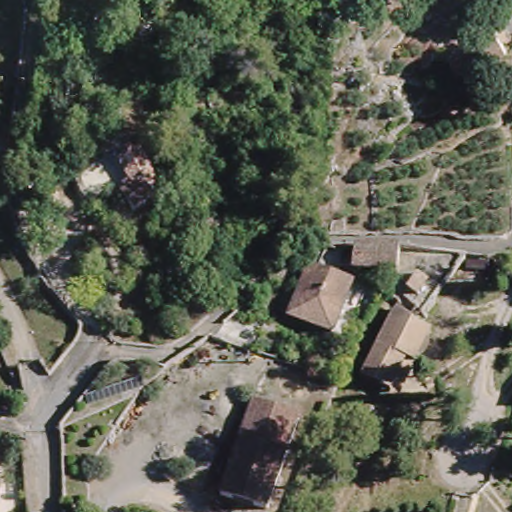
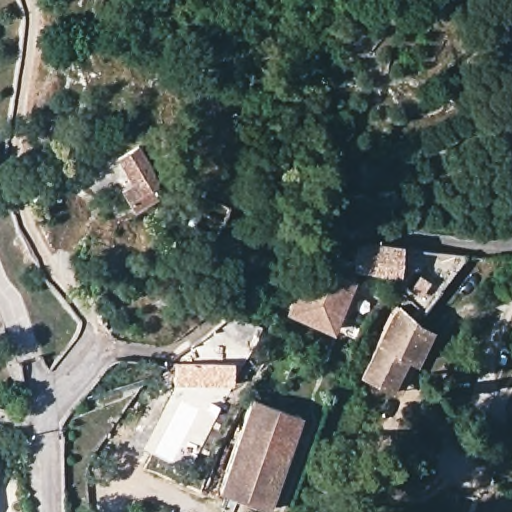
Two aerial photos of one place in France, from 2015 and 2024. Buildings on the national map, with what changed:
unchanged [(495,31),(507,24),(512,29),(512,47),(509,49),(512,52),(512,53),(497,62),(493,65),(485,71),(463,48),(480,40),(495,31)]
unchanged [(120,194),(144,178),(158,200),(135,215),(120,194)]
unchanged [(358,255),(374,253),(402,252),(398,280),(355,274),(358,255)]
unchanged [(320,253),(334,256),(341,256),(335,283),(348,288),(328,336),(287,321),(302,283),(308,284),(312,274),(320,253)]
unchanged [(405,293),(415,278),(426,286),(415,300),(405,293)]
unchanged [(364,385),(395,313),(414,327),(431,335),(417,368),(407,364),(392,398),(364,385)]
new [(233,363),(233,383),(175,383),(175,363),(233,363)]
unchanged [(225,496),(255,404),(301,418),(271,511),(225,496)]

